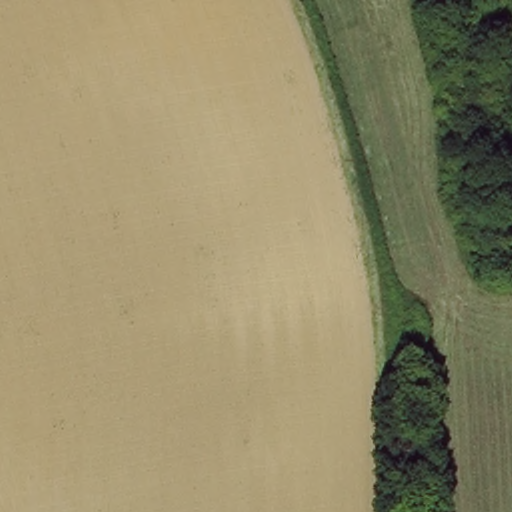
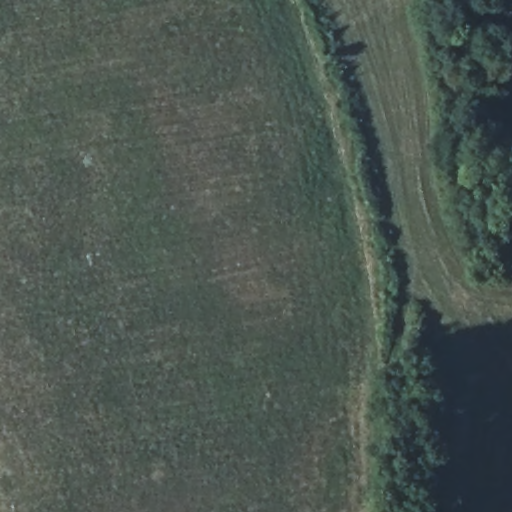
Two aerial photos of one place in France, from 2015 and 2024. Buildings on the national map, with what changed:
[]

